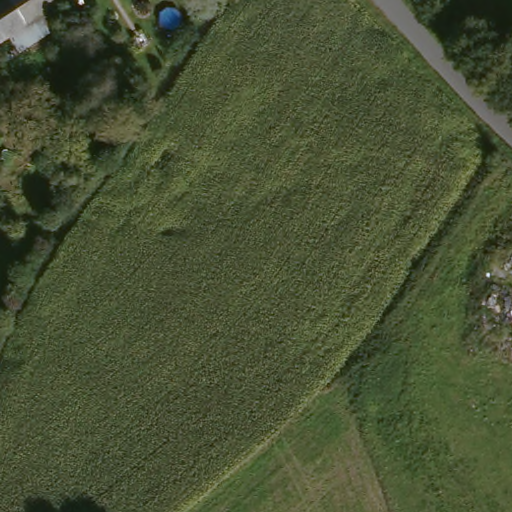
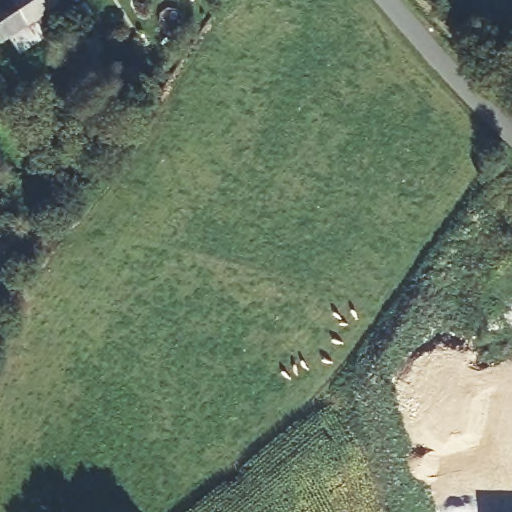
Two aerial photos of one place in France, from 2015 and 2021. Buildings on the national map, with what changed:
unchanged [(11,35),(1,41),(0,39),(0,3),(5,0),(61,0),(61,1),(36,18),(45,32),(20,49),(11,35)]
unchanged [(71,41),(79,56),(62,67),(54,54),(71,41)]

